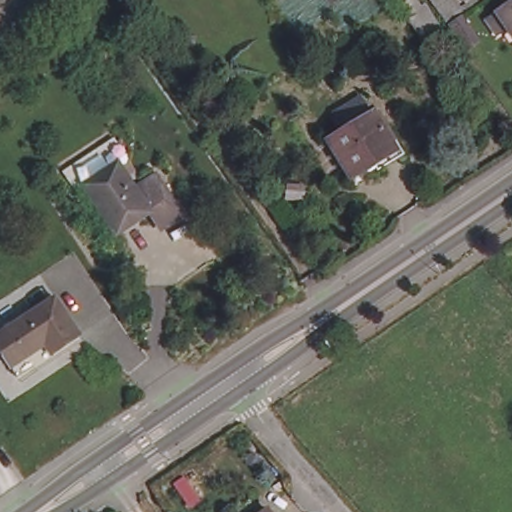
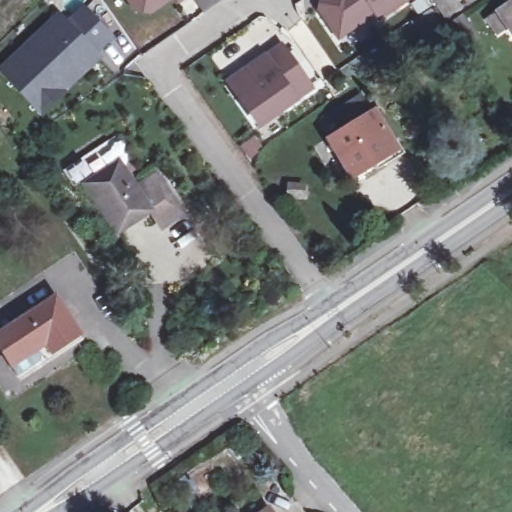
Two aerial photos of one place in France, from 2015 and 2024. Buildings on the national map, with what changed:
new [(154,16),(137,12),(128,0),(187,0),(178,7),(174,1),(154,16)]
new [(381,22),(376,17),(340,41),(319,11),(320,0),(412,0),(413,1),(381,22)]
demolished [(429,49),(397,0),(417,0),(421,6),(422,5),(445,38),(429,49)]
new [(82,2),(117,40),(102,57),(67,17),(82,2)]
new [(67,17),(102,57),(40,118),(0,75),(0,63),(58,9),(67,17)]
unchanged [(509,12),(512,10),(512,29),(511,30),(502,17),(509,12)]
unchanged [(464,17),(478,40),(465,48),(460,40),(454,32),(448,22),(460,15),(462,19),(464,17)]
new [(265,57),(265,59),(281,47),(311,88),(294,99),(295,100),(259,126),(240,98),(229,83),(236,77),(265,57)]
unchanged [(402,154),(381,167),(378,162),(355,175),(334,140),(351,129),(342,114),(366,100),(375,115),(378,112),(402,154)]
unchanged [(129,160),(144,185),(159,171),(186,211),(162,229),(152,212),(122,235),(89,187),(129,160)]
unchanged [(22,362),(5,333),(67,293),(92,331),(63,349),(28,372),(22,362)]
unchanged [(282,512),(263,512),(276,503),(282,512)]

